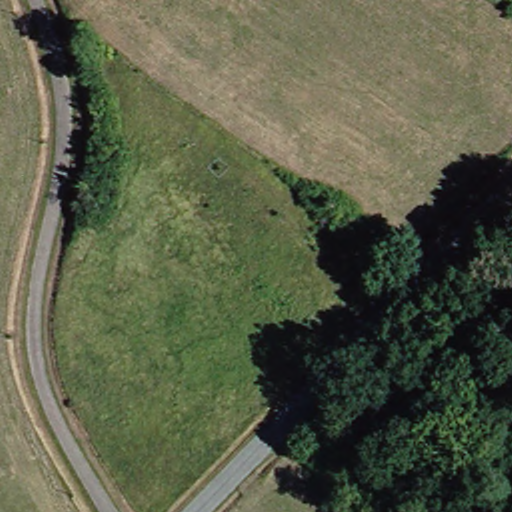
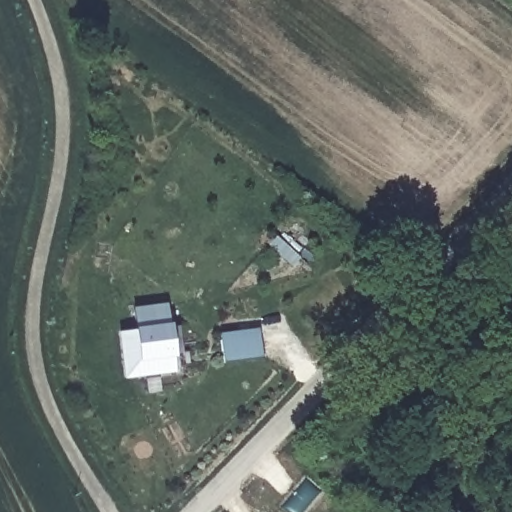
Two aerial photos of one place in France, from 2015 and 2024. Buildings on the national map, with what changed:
new [(132,307),(168,303),(177,372),(124,378),(118,332),(135,330),(132,307)]
new [(259,328),(262,357),(223,362),(220,333),(259,328)]

